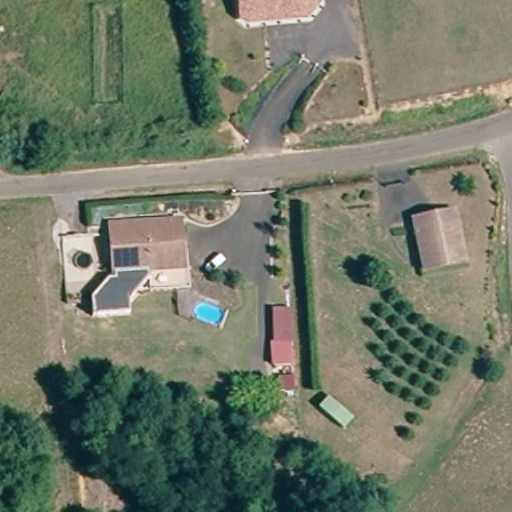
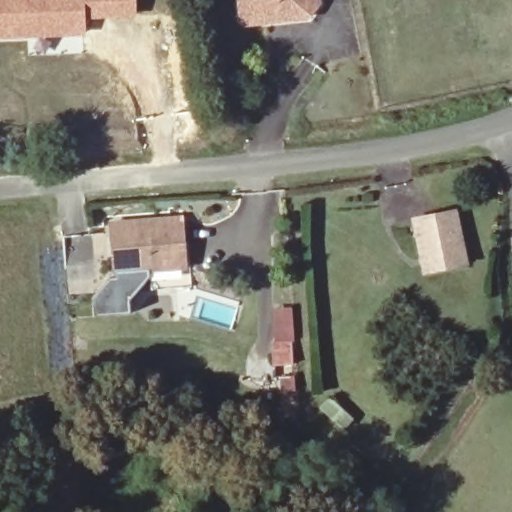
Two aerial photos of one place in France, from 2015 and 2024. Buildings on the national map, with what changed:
new [(85,20),(86,36),(0,40),(0,0),(136,0),(137,17),(85,20)]
unchanged [(318,17),(257,28),(251,25),(247,0),(329,0),(322,10),(318,17)]
unchanged [(428,275),(426,260),(421,222),(458,217),(463,255),(465,270),(428,275)]
unchanged [(191,271),(156,273),(121,276),(117,227),(187,222),(191,271)]
new [(95,317),(95,298),(110,281),(116,281),(116,275),(121,273),(121,276),(149,274),(129,300),(130,314),(95,317)]
unchanged [(289,353),(272,354),(269,297),(287,296),(289,353)]
unchanged [(350,412),(340,422),(318,401),(328,391),(350,412)]

